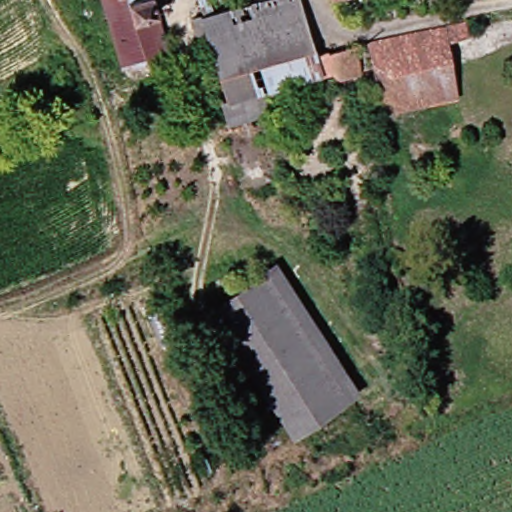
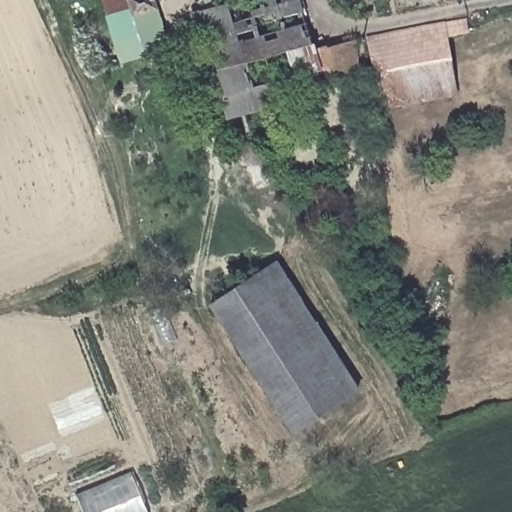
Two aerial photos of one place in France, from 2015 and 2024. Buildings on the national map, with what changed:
unchanged [(111,13),(107,0),(150,0),(111,13)]
unchanged [(150,0),(157,0),(173,57),(128,70),(111,13),(150,0)]
unchanged [(207,23),(197,26),(194,13),(204,11),(201,0),(220,0),(222,5),(243,0),(300,0),(320,73),(254,90),(261,114),(225,123),(219,100),(224,99),(207,23)]
unchanged [(387,109),(370,37),(467,17),(471,32),(448,37),(458,94),(387,109)]
unchanged [(353,69),(352,63),(326,69),(322,50),(361,40),(365,67),(353,69)]
unchanged [(281,264),(359,385),(292,429),(212,308),(281,264)]
new [(133,470),(150,512),(83,512),(77,496),(133,470)]

